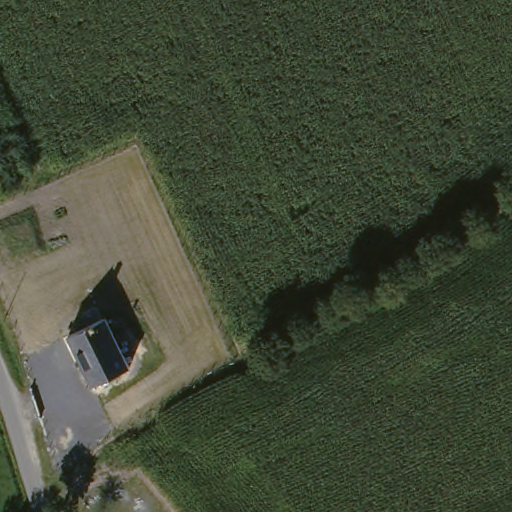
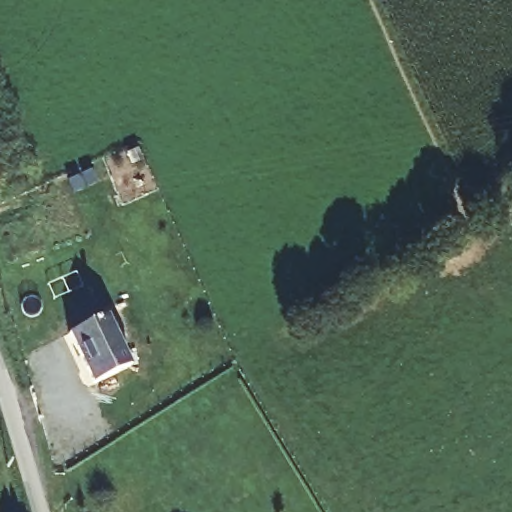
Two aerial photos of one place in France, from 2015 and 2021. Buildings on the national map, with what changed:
unchanged [(112,308),(133,361),(96,377),(72,327),(112,308)]

